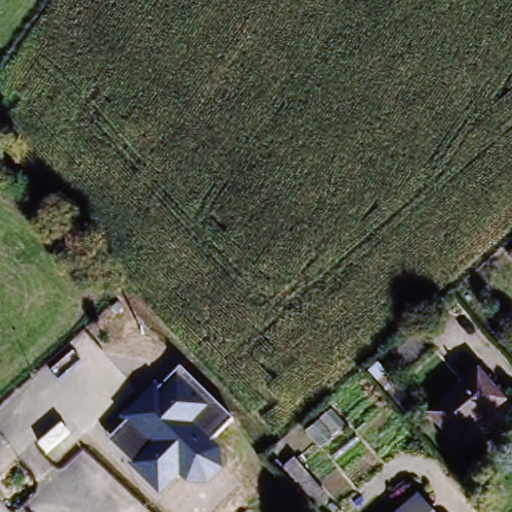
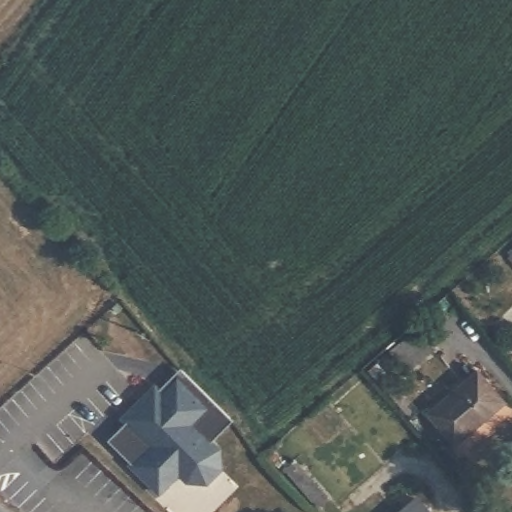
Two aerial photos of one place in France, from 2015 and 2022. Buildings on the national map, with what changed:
unchanged [(512,259),(512,261),(511,260),(512,259)]
unchanged [(389,362),(415,341),(428,355),(402,377),(389,362)]
unchanged [(127,424),(121,417),(155,385),(158,388),(182,366),(233,417),(211,439),(220,449),(224,468),(208,484),(187,484),(179,476),(160,494),(128,464),(131,461),(111,439),(127,424)]
unchanged [(453,451),(429,423),(475,382),(500,410),(453,451)]
unchanged [(307,491),(290,470),(298,461),(319,484),(307,491)]
unchanged [(416,508),(420,512),(412,512),(416,508)]

